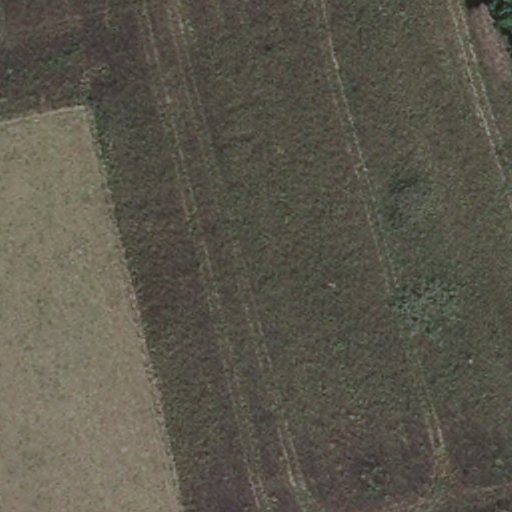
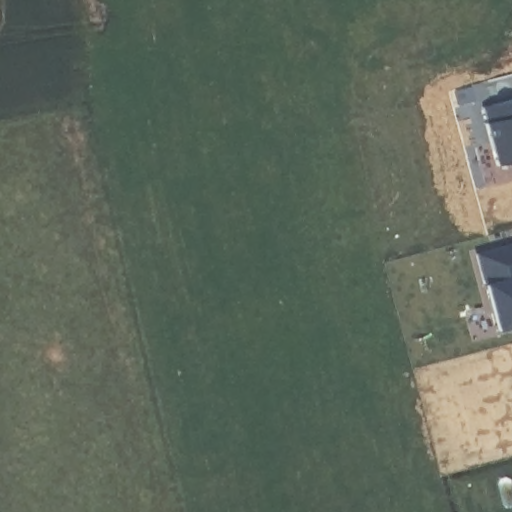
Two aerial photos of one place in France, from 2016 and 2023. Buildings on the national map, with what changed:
new [(497,168),(481,107),(512,99),(512,164),(497,168)]
new [(496,333),(485,285),(475,253),(512,243),(512,328),(496,333)]

